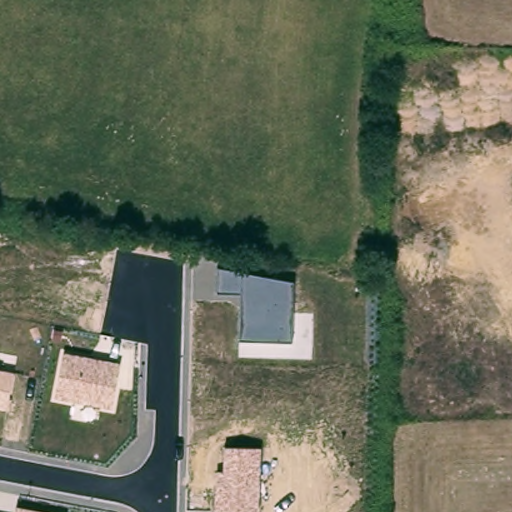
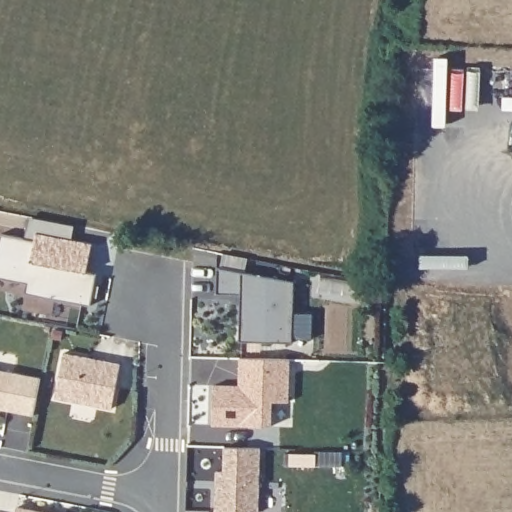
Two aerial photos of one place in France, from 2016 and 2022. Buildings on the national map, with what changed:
new [(97,298),(92,298),(91,306),(25,294),(27,284),(0,279),(0,237),(0,235),(35,241),(36,234),(92,244),(87,272),(97,274),(95,285),(100,286),(97,298)]
unchanged [(240,295),(217,294),(219,268),(294,283),(292,342),(240,342),(240,295)]
unchanged [(63,354),(121,364),(114,409),(55,398),(63,354)]
new [(290,401),(272,400),(272,426),(214,425),(214,386),(240,387),(240,359),(290,360),(290,401)]
unchanged [(15,373),(7,410),(0,409),(0,370),(15,373)]
unchanged [(216,471),(225,471),(225,448),(260,449),(258,512),(215,511),(216,471)]
unchanged [(38,512),(15,512),(16,508),(38,512)]

